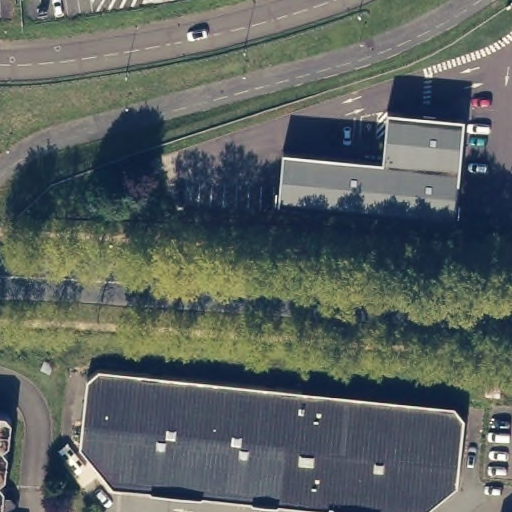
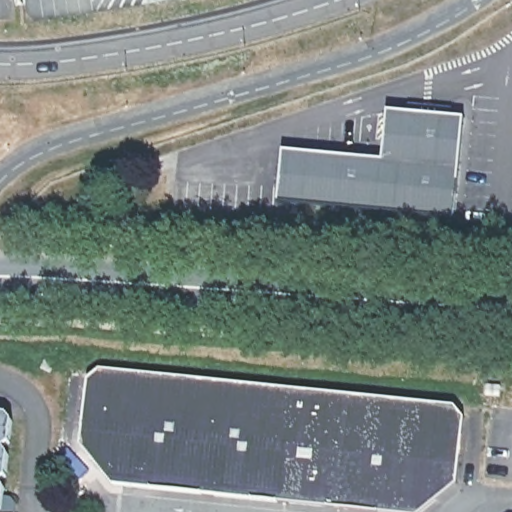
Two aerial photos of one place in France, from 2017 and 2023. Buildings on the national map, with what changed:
unchanged [(282,149),(382,156),(387,108),(464,116),(456,219),(277,200),(282,149)]
unchanged [(422,512),(378,512),(379,509),(328,503),(327,507),(277,502),(277,498),(252,496),(252,500),(202,494),(202,490),(152,485),(151,489),(112,485),(80,445),(87,379),(99,369),(454,406),(464,418),(457,484),(422,512)]
unchanged [(499,396),(492,395),(485,395),(486,384),(492,385),(500,385),(499,396)]
unchanged [(12,415),(9,438),(2,443),(8,449),(6,472),(0,476),(0,408),(6,409),(12,415)]
unchanged [(4,492),(11,493),(16,499),(14,512),(0,512),(0,478),(5,483),(4,492)]

